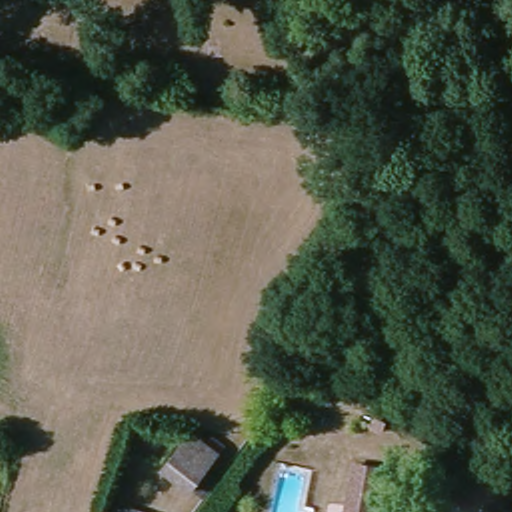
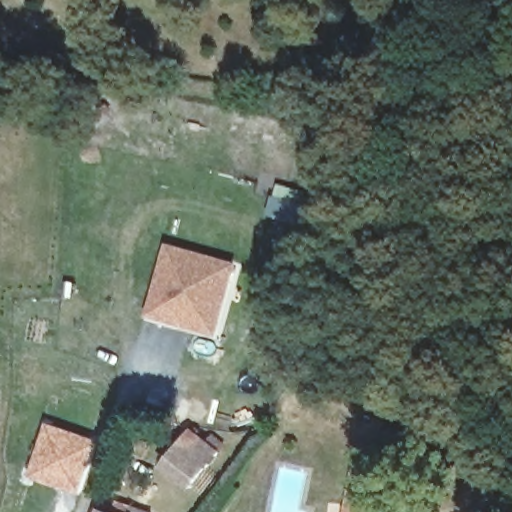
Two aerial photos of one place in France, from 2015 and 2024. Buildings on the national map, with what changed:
new [(144,319),(167,243),(237,263),(217,336),(144,319)]
new [(46,421),(96,439),(78,493),(28,478),(46,421)]
unchanged [(194,485),(168,465),(195,430),(222,450),(194,485)]
unchanged [(435,488),(419,480),(433,452),(451,460),(435,488)]
unchanged [(359,458),(363,459),(380,463),(373,495),(375,495),(372,512),(349,512),(359,458)]
unchanged [(512,496),(506,509),(479,498),(493,466),(512,474),(512,496)]
unchanged [(122,506),(138,512),(120,512),(122,506)]

